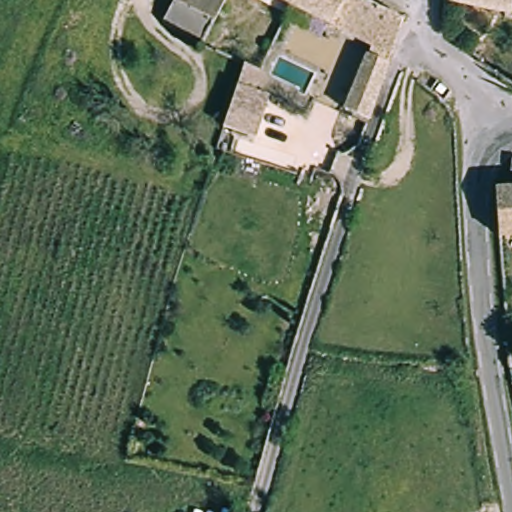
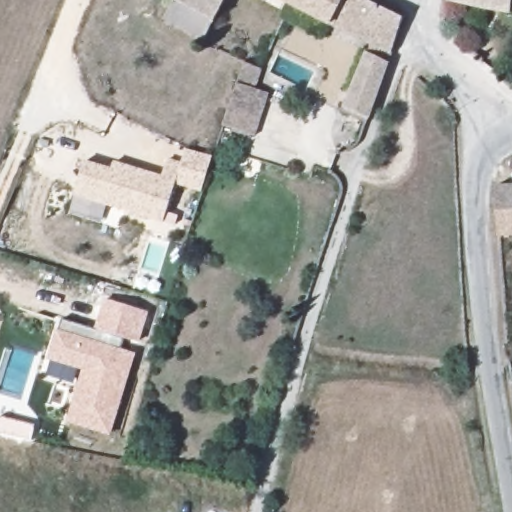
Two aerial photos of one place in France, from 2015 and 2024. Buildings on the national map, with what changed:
unchanged [(204,30),(163,13),(169,0),(217,0),(204,30)]
unchanged [(284,1),(281,0),(285,0),(284,1)]
unchanged [(398,13),(386,50),(284,1),(285,0),(371,0),(398,13)]
unchanged [(503,13),(445,4),(446,0),(505,0),(503,13)]
unchanged [(363,46),(385,54),(367,110),(344,101),(363,46)]
unchanged [(258,70),(253,86),(269,93),(256,136),(225,126),(245,65),(258,70)]
new [(202,192),(175,184),(163,221),(74,194),(85,160),(112,167),(113,160),(160,174),(165,159),(181,163),(185,148),(212,156),(202,192)]
unchanged [(511,156),(511,171),(500,172),(498,157),(511,156)]
unchanged [(512,183),(512,235),(498,236),(493,185),(502,184),(512,183)]
new [(139,342),(95,328),(104,298),(148,311),(139,342)]
new [(110,436),(65,422),(82,370),(47,359),(57,328),(59,329),(62,320),(122,338),(119,347),(137,353),(110,436)]

